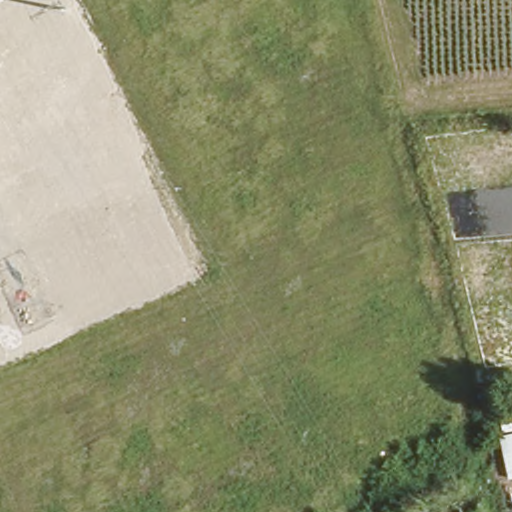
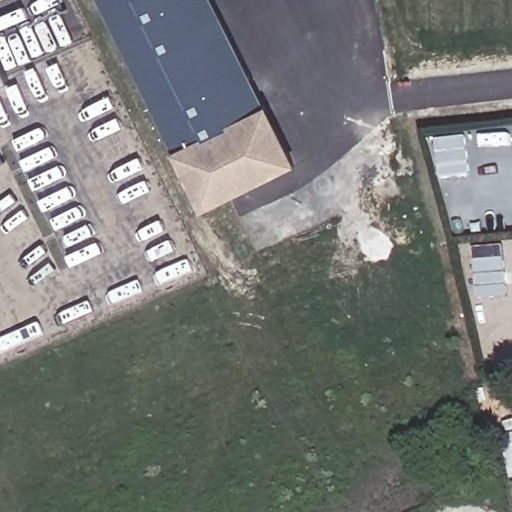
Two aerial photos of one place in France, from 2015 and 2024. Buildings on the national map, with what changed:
new [(99,0),(214,0),(296,166),(204,213),(99,0)]
new [(0,86),(0,73),(5,84),(0,86)]
new [(465,132),(470,176),(440,179),(434,135),(465,132)]
new [(503,242),(508,297),(478,299),(473,244),(503,242)]
unchanged [(501,436),(512,433),(512,480),(509,481),(501,436)]
demolished [(484,493),(489,512),(439,512),(484,493)]

